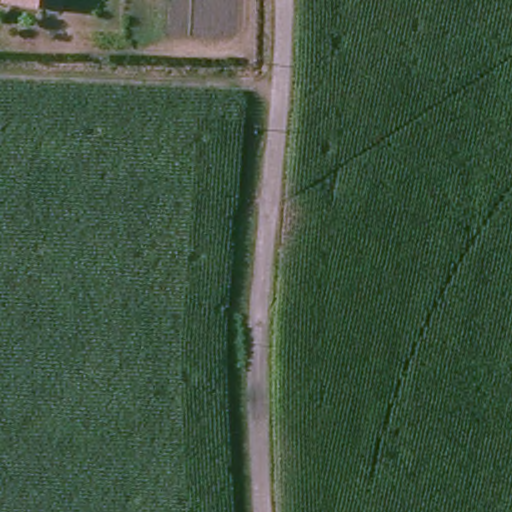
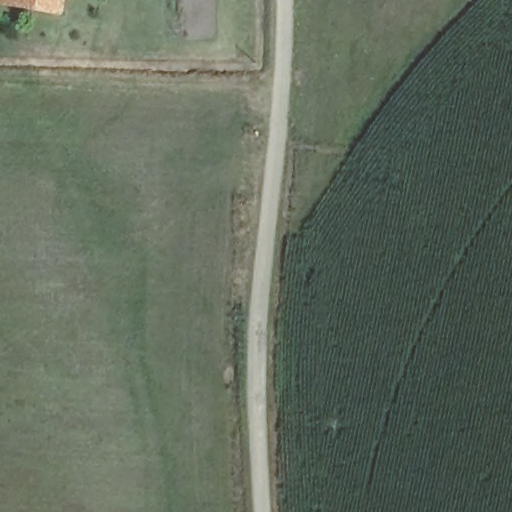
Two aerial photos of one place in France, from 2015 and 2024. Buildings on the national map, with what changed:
unchanged [(58,13),(2,4),(3,0),(60,0),(58,13)]

